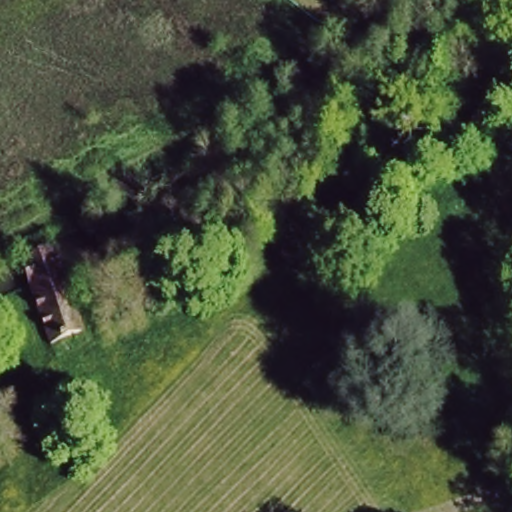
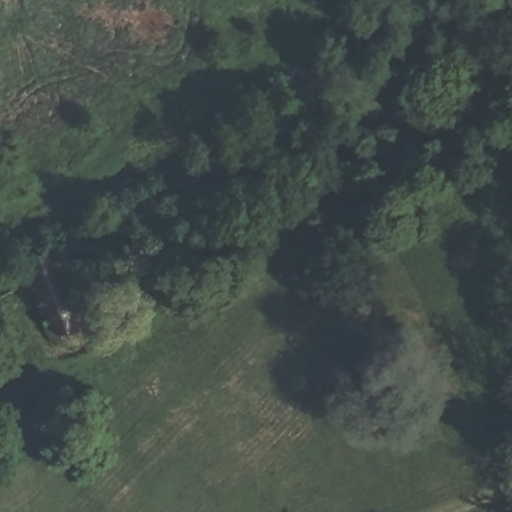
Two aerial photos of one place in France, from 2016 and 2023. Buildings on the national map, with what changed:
unchanged [(26,281),(20,266),(53,250),(61,271),(77,315),(85,335),(50,348),(27,288),(26,281)]

